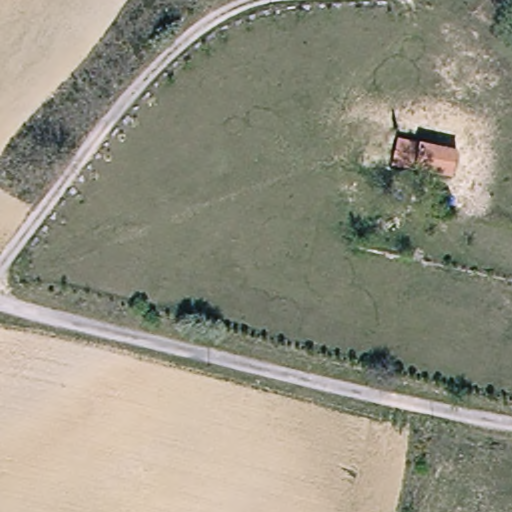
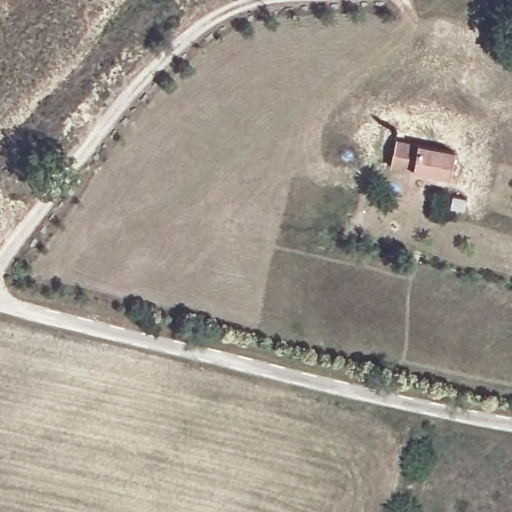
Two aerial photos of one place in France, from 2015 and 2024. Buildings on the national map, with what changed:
unchanged [(460,144),(455,171),(400,160),(405,133),(460,144)]

